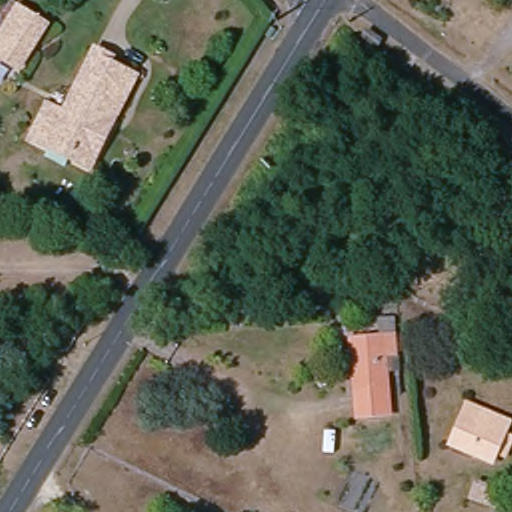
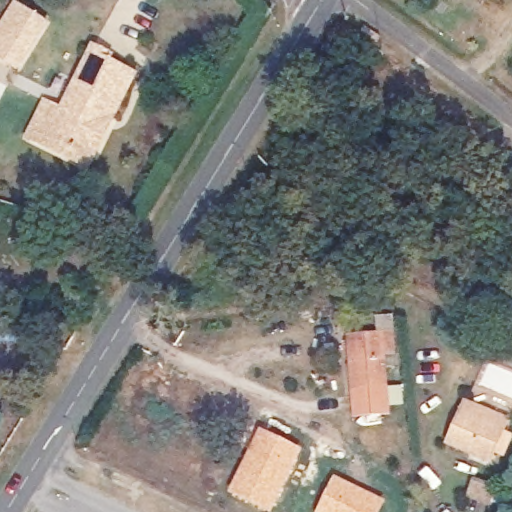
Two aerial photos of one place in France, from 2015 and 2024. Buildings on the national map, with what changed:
unchanged [(47,22),(25,68),(3,57),(0,56),(0,37),(6,26),(17,5),(47,22)]
unchanged [(61,159),(40,154),(50,115),(65,117),(83,48),(108,52),(106,63),(135,70),(122,113),(115,112),(103,156),(100,167),(61,159)]
unchanged [(0,169),(11,172),(6,185),(0,184),(0,169)]
unchanged [(394,418),(353,421),(351,389),(349,389),(346,339),(365,337),(388,335),(394,418)]
unchanged [(512,446),(503,445),(499,452),(458,438),(468,409),(508,420),(507,430),(512,431),(512,446)]
new [(301,448),(270,512),(267,512),(227,492),(259,428),(301,448)]
new [(385,500),(380,512),(314,512),(333,475),(385,500)]
unchanged [(478,481),(499,490),(490,509),(469,501),(478,481)]

